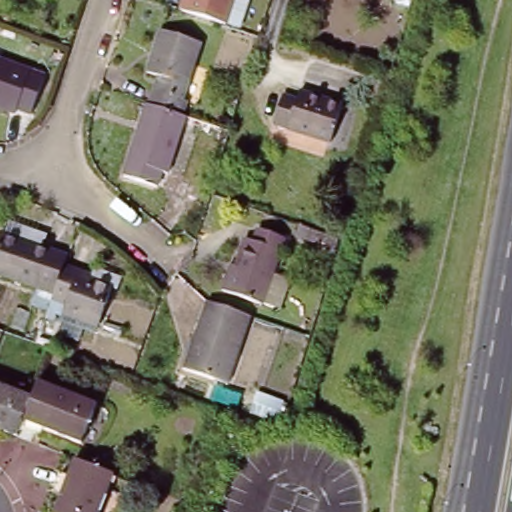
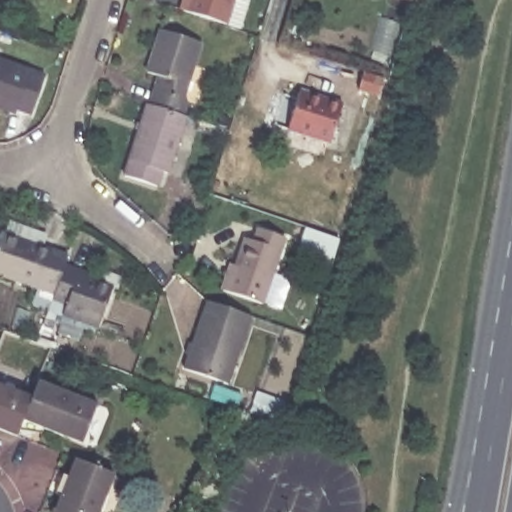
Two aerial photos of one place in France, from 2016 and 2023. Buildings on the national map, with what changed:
unchanged [(184,0),(188,0),(191,1),(191,0),(235,0),(226,29),(180,14),(184,0)]
unchanged [(411,0),(410,4),(397,0),(411,0)]
unchanged [(148,110),(157,80),(145,76),(160,34),(198,47),(175,118),(148,110)]
unchanged [(17,117),(0,111),(0,63),(33,75),(17,117)]
unchanged [(282,97),(297,102),(300,94),(343,107),(332,145),(297,135),(273,128),(275,125),(282,97)]
unchanged [(175,118),(184,120),(165,178),(158,175),(154,190),(122,179),(145,109),(148,110),(175,118)]
unchanged [(237,268),(247,241),(255,244),(260,232),(285,242),(262,306),(223,292),(230,274),(232,266),(237,268)]
unchanged [(67,268),(57,297),(0,276),(0,243),(2,235),(70,260),(67,268)]
unchanged [(100,330),(65,317),(69,306),(55,301),(57,297),(67,268),(82,273),(95,278),(93,283),(114,290),(100,330)]
unchanged [(208,304),(252,319),(227,387),(185,372),(208,304)]
unchanged [(80,447),(20,423),(28,402),(35,385),(95,408),(80,447)]
unchanged [(20,423),(13,440),(0,435),(0,391),(28,402),(20,423)]
unchanged [(73,465),(111,479),(98,512),(54,512),(73,465)]

